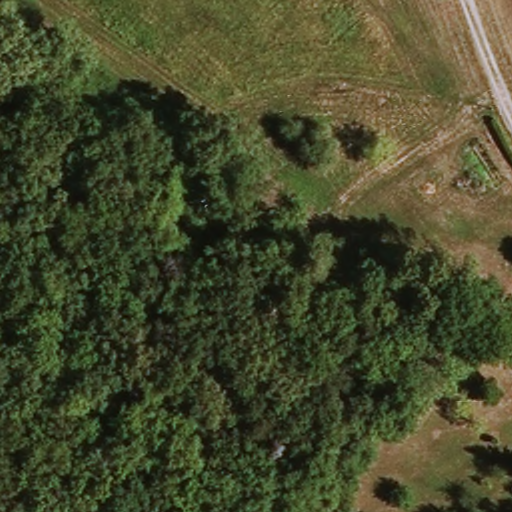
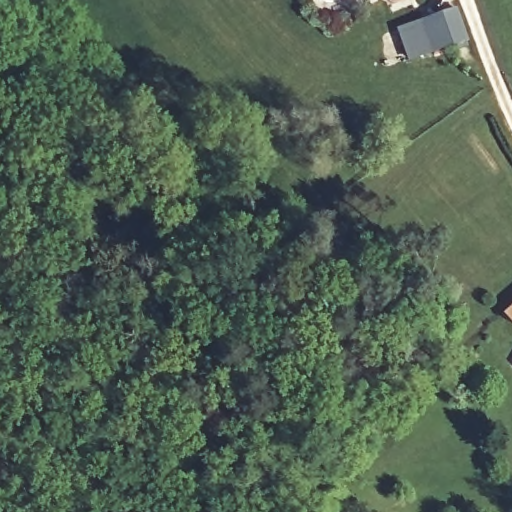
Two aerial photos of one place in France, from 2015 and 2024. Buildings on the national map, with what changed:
new [(470,40),(409,61),(398,27),(458,6),(470,40)]
new [(505,314),(512,309),(512,322),(505,314)]
unchanged [(511,363),(512,362),(512,365),(511,363)]

